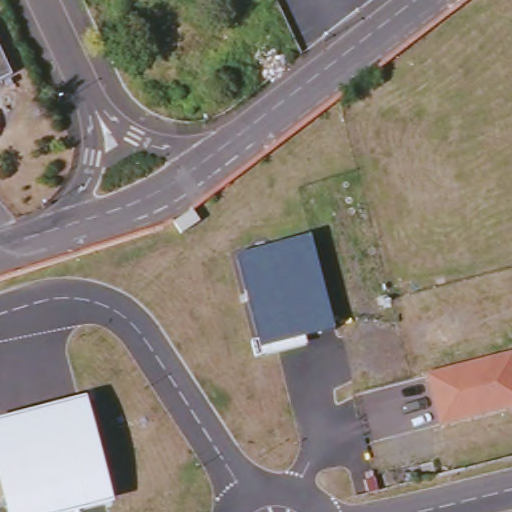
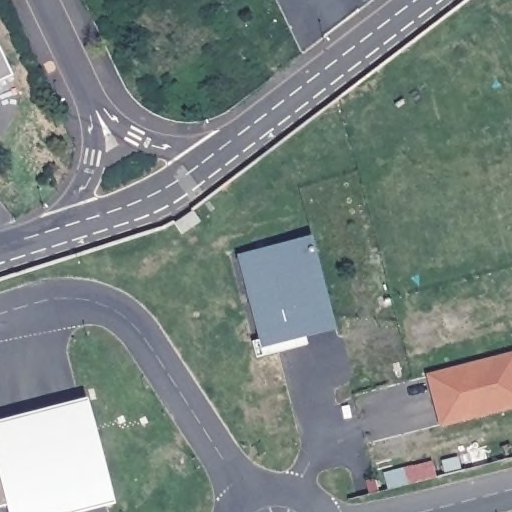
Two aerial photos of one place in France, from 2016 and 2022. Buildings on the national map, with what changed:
unchanged [(12,76),(0,82),(0,51),(12,76)]
unchanged [(339,332),(309,339),(311,346),(258,360),(253,345),(260,342),(238,257),(315,237),(339,332)]
unchanged [(427,377),(512,355),(512,412),(441,429),(427,377)]
unchanged [(88,399),(118,505),(92,512),(9,512),(8,506),(0,509),(0,424),(88,399)]

